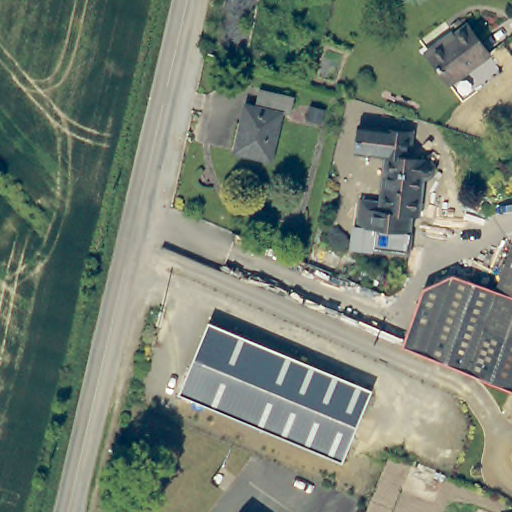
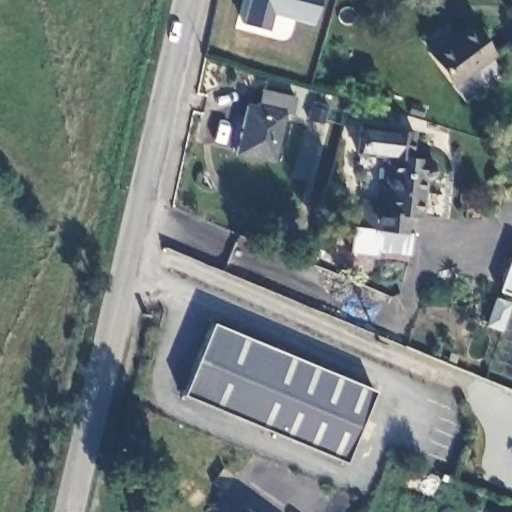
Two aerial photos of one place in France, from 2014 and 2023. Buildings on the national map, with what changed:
unchanged [(426,49),(441,37),(445,42),(467,23),(488,55),(450,82),(426,49)]
unchanged [(295,116),(285,114),(273,165),(242,158),(252,105),(261,107),(265,91),(297,98),(295,116)]
unchanged [(407,161),(432,166),(437,173),(435,178),(423,186),(420,218),(411,217),(408,236),(377,231),(376,237),(352,233),(358,199),(377,203),(385,156),(356,150),(361,123),(412,134),(407,161)]
demolished [(422,315),(426,299),(453,282),(496,294),(506,247),(512,249),(512,390),(416,354),(422,315)]
new [(498,289),(512,252),(512,295),(498,289)]
unchanged [(377,393),(345,465),(182,395),(211,323),(377,393)]
unchanged [(245,512),(241,512),(242,510),(245,512)]

